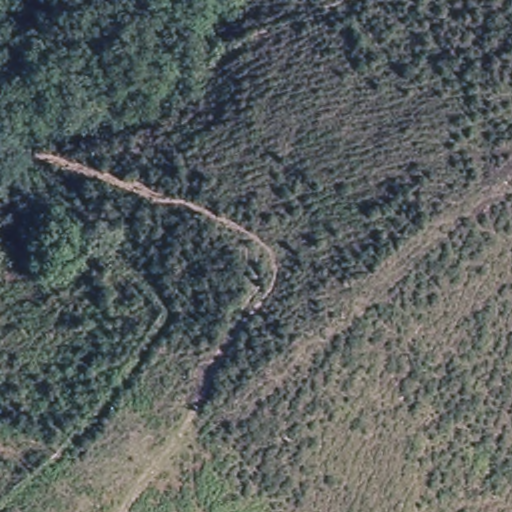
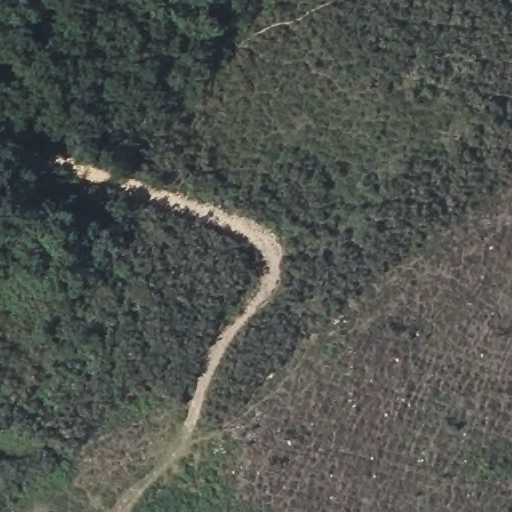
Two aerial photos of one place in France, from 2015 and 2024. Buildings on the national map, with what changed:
[]

